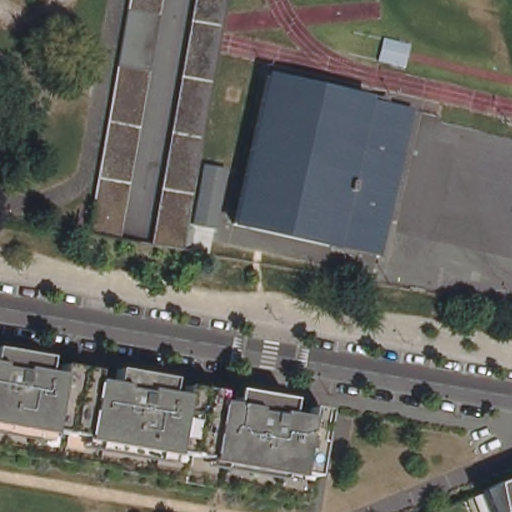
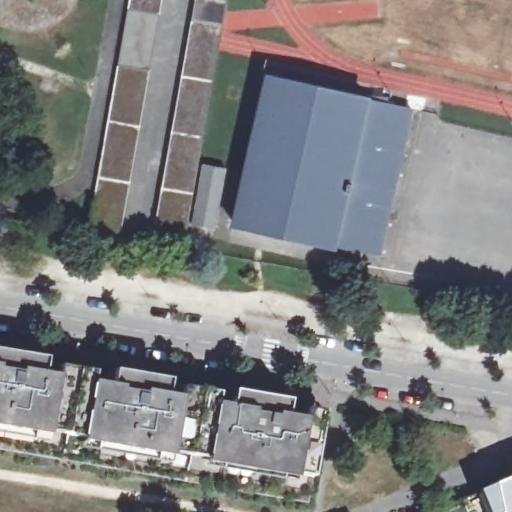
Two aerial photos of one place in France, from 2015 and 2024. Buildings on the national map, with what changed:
unchanged [(157,0),(115,245),(83,240),(127,0),(157,0)]
unchanged [(213,44),(177,247),(147,242),(191,0),(222,0),(217,25),(213,44)]
unchanged [(377,249),(330,239),(329,242),(230,220),(263,72),(362,94),(360,98),(410,109),(377,249)]
unchanged [(219,165),(207,224),(185,219),(195,160),(219,165)]
unchanged [(200,383),(185,467),(0,435),(0,339),(201,374),(200,383)]
unchanged [(325,396),(320,419),(318,430),(308,488),(185,467),(200,383),(201,374),(308,393),(325,396)]
unchanged [(483,488),(485,487),(512,476),(512,512),(424,512),(483,488)]

